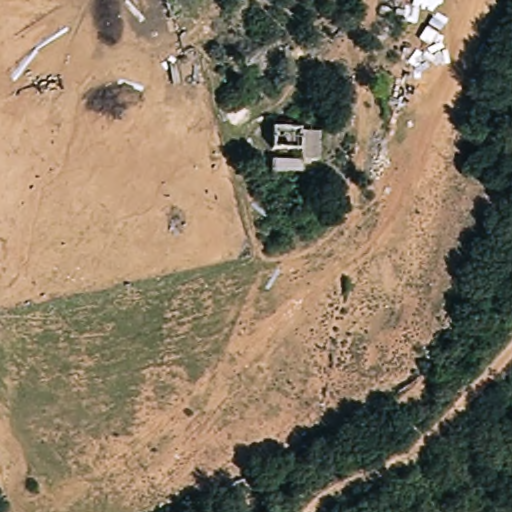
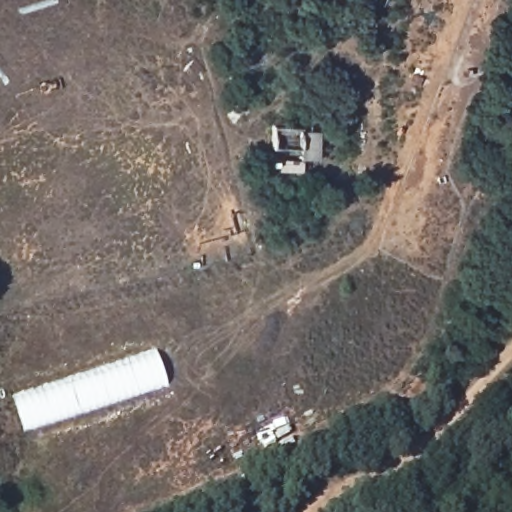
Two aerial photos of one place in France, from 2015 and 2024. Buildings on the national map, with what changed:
unchanged [(275,149),(276,127),(305,126),(325,127),(322,175),(272,172),(275,149)]
new [(157,349),(168,381),(22,428),(11,393),(157,349)]

